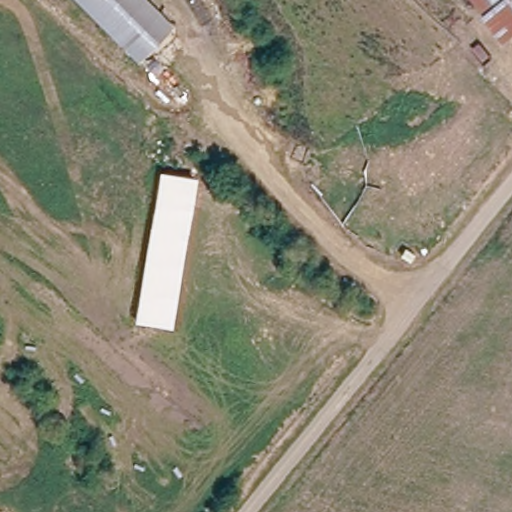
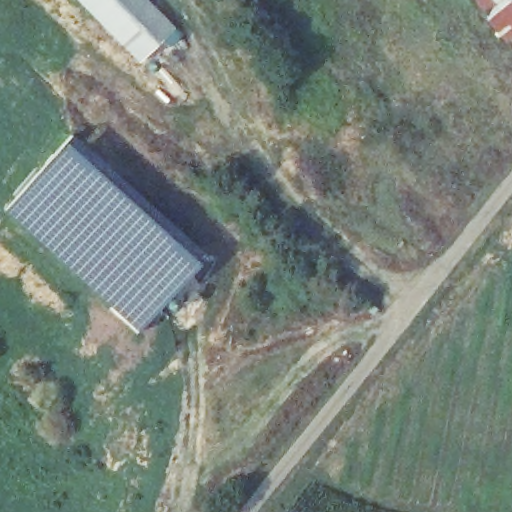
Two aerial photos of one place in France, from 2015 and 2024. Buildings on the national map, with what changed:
unchanged [(144,61),(77,0),(145,0),(175,28),(144,61)]
unchanged [(473,0),(512,0),(512,40),(507,44),(473,0)]
new [(2,211),(71,134),(204,258),(137,334),(2,211)]
demolished [(159,172),(198,178),(172,326),(134,321),(159,172)]

